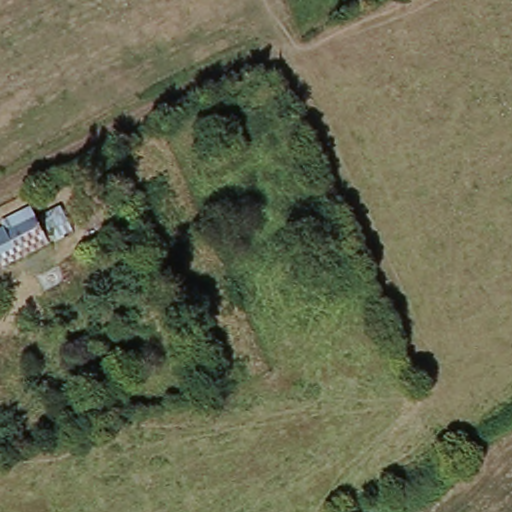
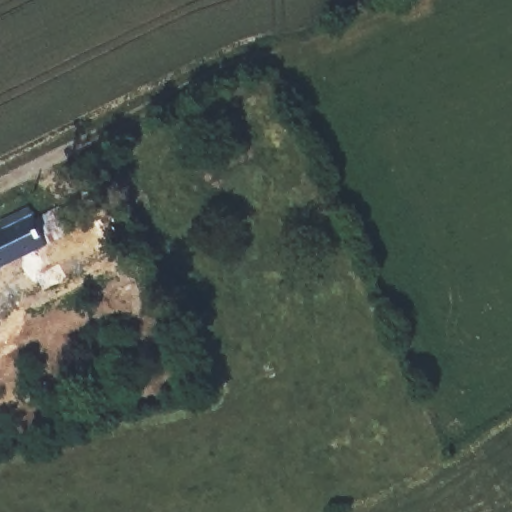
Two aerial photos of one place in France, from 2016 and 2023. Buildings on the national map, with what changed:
unchanged [(9,224),(6,217),(34,202),(41,215),(65,202),(77,226),(52,239),(0,265),(0,229),(9,224)]

